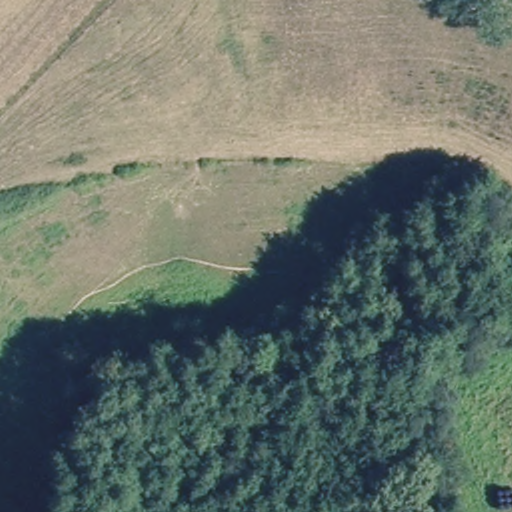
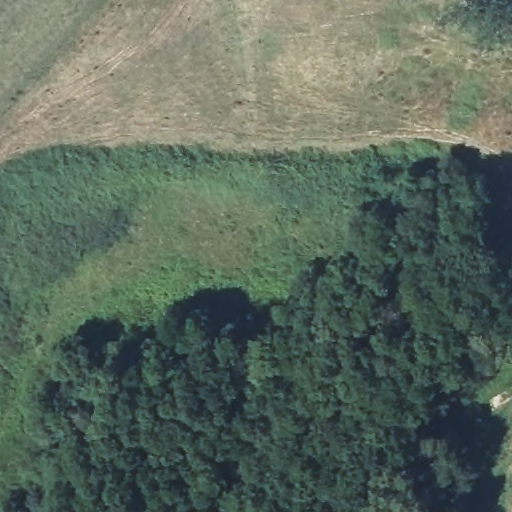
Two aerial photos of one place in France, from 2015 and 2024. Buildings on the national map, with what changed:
[]

